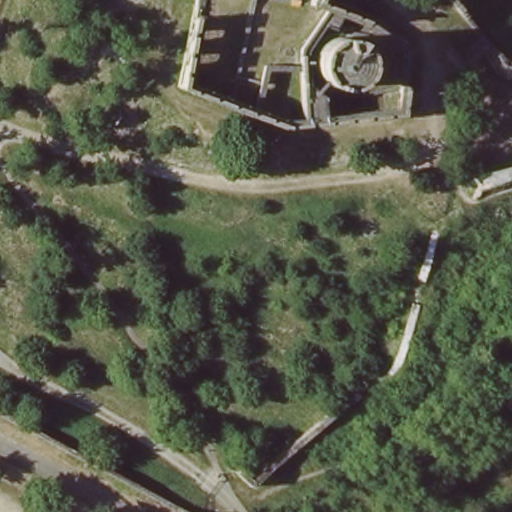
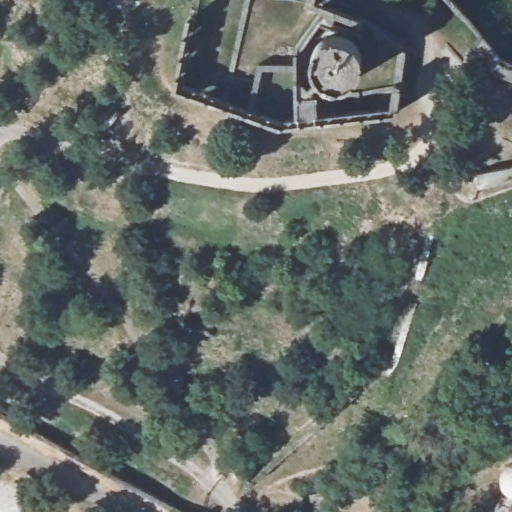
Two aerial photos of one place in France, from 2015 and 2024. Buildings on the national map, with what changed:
unchanged [(308,50),(313,42),(320,37),(330,35),(340,36),(348,40),(353,46),(357,55),(358,64),(355,73),(348,80),(340,85),(331,86),(322,85),(314,80),(308,72),(305,63),(305,59),(308,50)]

